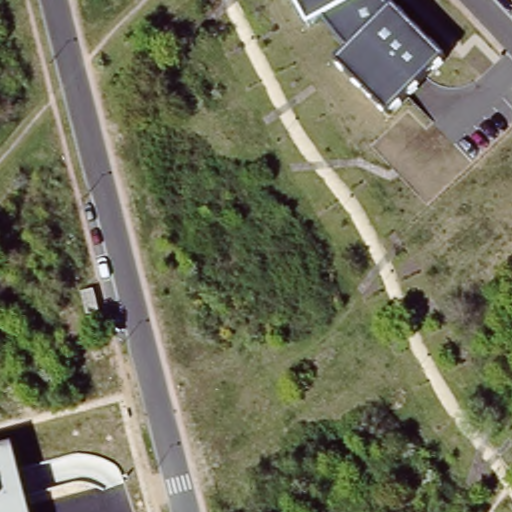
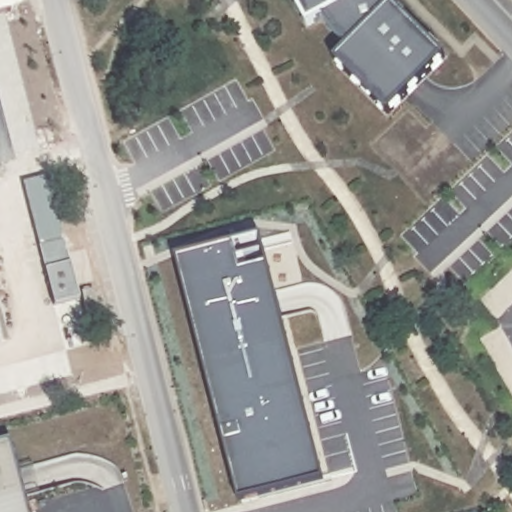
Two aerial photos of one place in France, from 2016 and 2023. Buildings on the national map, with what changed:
unchanged [(294,0),(381,0),(390,9),(395,5),(446,56),(390,114),(337,62),(348,50),(325,19),(309,27),(294,0)]
new [(239,503),(176,260),(260,237),(323,481),(239,503)]
unchanged [(31,512),(0,512),(0,446),(12,443),(31,512)]

